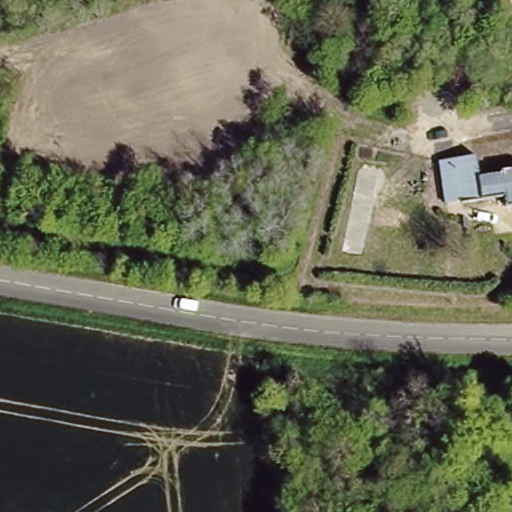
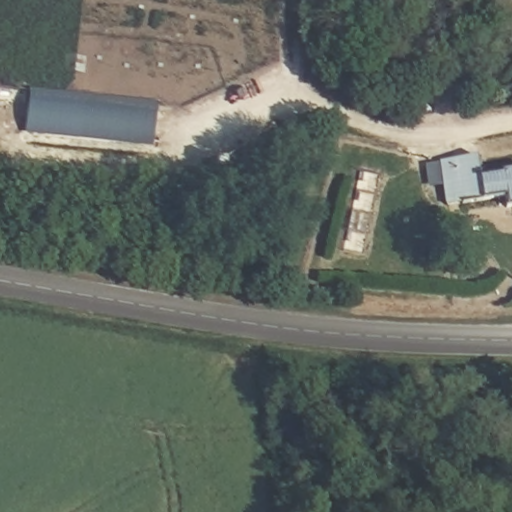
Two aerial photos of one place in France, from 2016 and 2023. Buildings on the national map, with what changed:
new [(154,143),(27,131),(31,90),(157,102),(154,143)]
unchanged [(482,167),(512,164),(512,204),(506,205),(507,196),(443,203),(437,156),(479,149),(482,167)]

